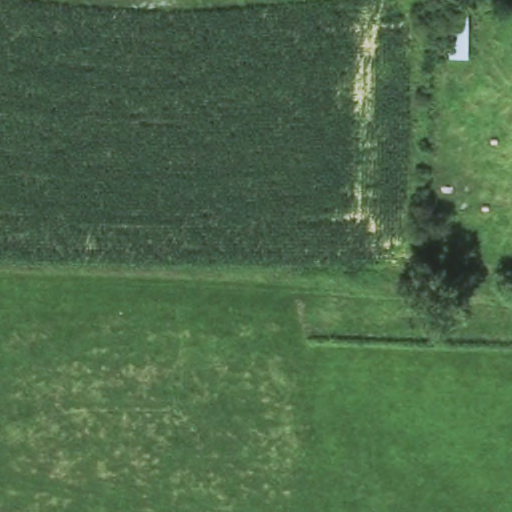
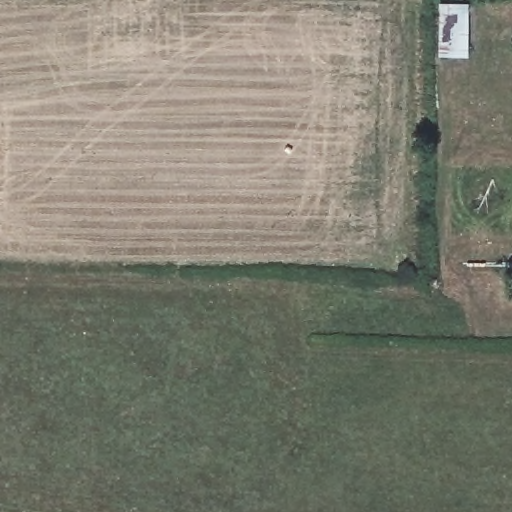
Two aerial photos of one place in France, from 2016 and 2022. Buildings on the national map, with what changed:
unchanged [(471,29),(470,50),(444,50),(444,1),(471,1),(471,29)]

